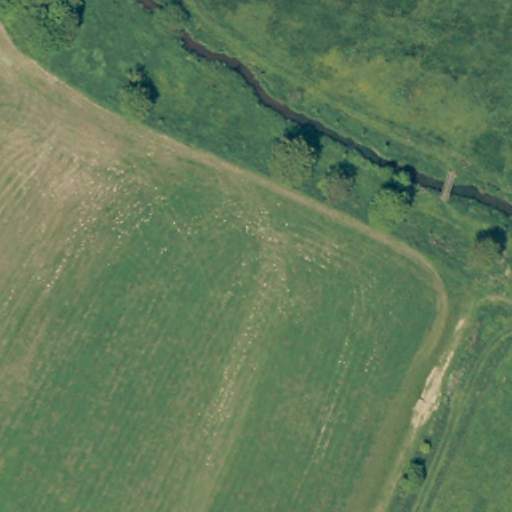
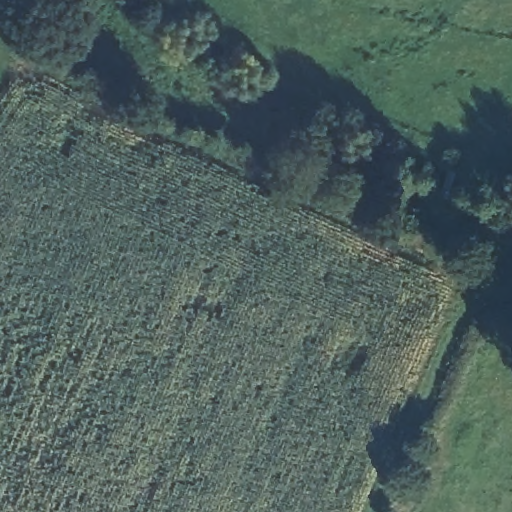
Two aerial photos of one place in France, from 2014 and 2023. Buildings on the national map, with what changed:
[]

